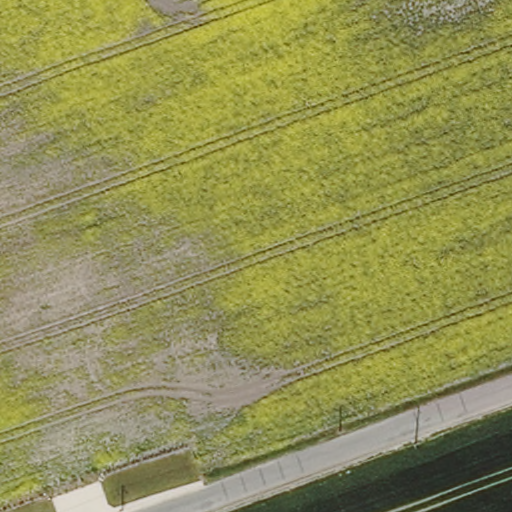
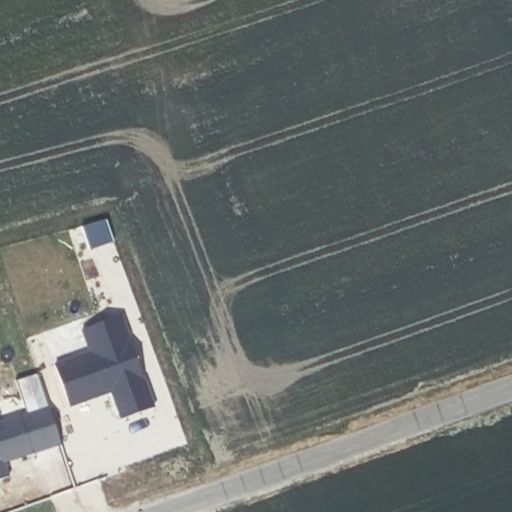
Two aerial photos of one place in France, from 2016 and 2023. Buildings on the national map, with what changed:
new [(89,351),(82,329),(123,316),(154,407),(119,418),(110,394),(70,407),(55,363),(89,351)]
new [(48,407),(60,444),(12,459),(11,456),(6,458),(7,461),(4,462),(8,477),(0,480),(0,423),(48,407)]

